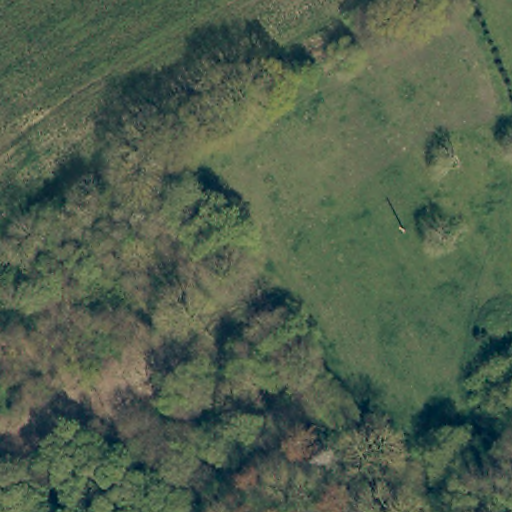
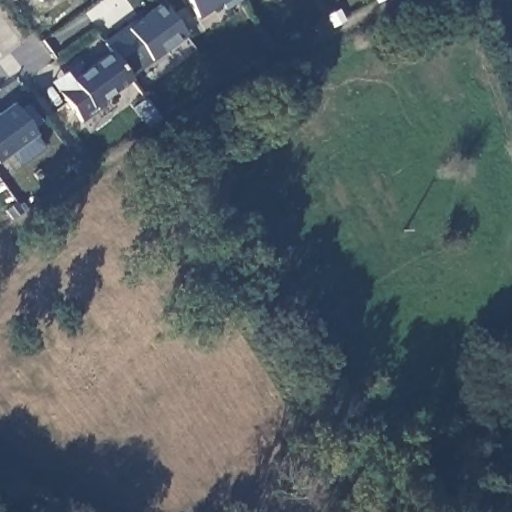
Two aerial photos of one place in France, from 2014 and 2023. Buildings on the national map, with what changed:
new [(222,9),(217,2),(196,15),(186,0),(237,0),(222,9)]
new [(151,59),(127,74),(110,52),(100,40),(134,16),(137,20),(161,1),(185,36),(151,59)]
new [(86,70),(110,52),(132,80),(102,101),(107,107),(83,124),(79,119),(63,99),(51,83),(80,62),(86,70)]
new [(19,111),(28,105),(41,123),(32,129),(36,136),(0,161),(0,113),(13,103),(19,111)]

